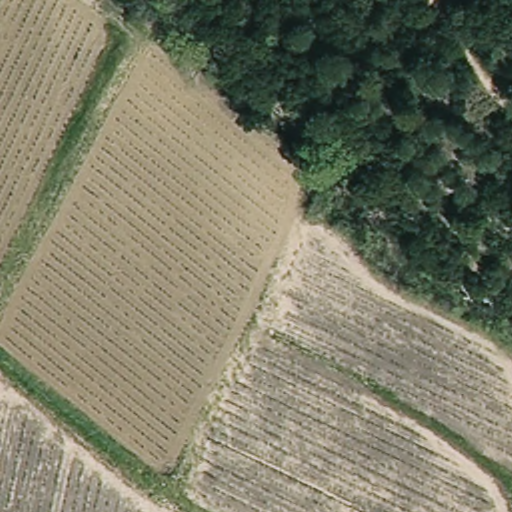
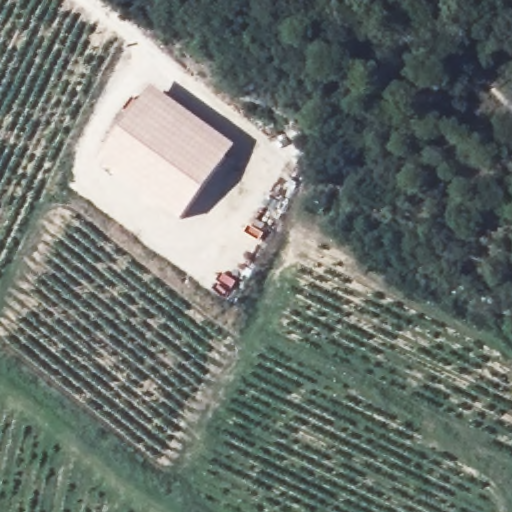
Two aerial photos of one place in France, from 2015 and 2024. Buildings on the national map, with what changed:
new [(233,145),(178,223),(96,160),(152,88),(233,145)]

